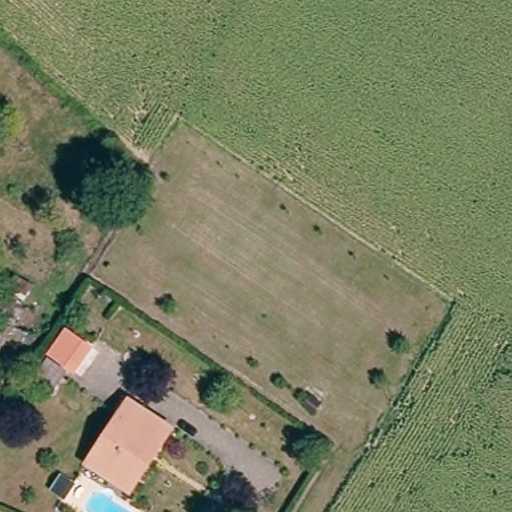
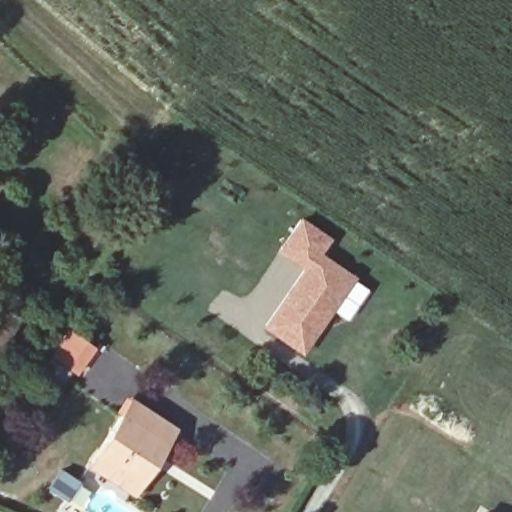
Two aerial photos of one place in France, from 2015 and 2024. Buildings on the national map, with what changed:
new [(330,238),(320,254),(354,276),(304,355),(259,328),(300,268),(275,252),(299,217),(330,238)]
unchanged [(16,310),(0,341),(0,301),(16,310)]
unchanged [(67,338),(83,350),(68,370),(52,358),(67,338)]
unchanged [(79,458),(123,404),(162,435),(149,451),(157,457),(145,472),(137,466),(118,490),(79,458)]
new [(480,510),(483,512),(479,512),(480,510)]

